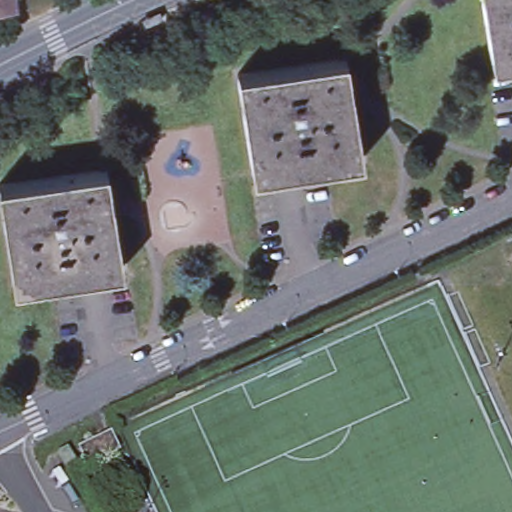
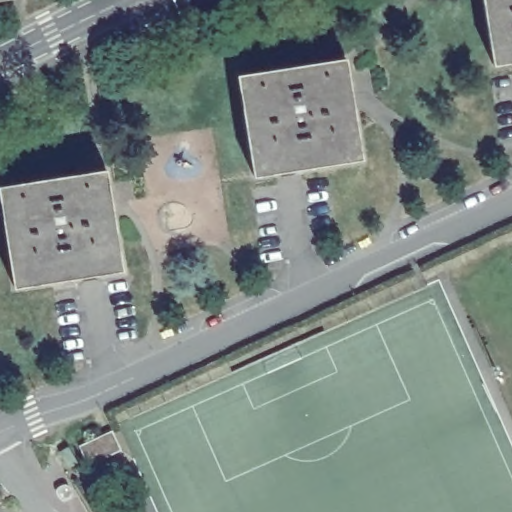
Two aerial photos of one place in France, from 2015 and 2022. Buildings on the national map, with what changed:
unchanged [(482,0),(512,0),(512,63),(492,66),(482,0)]
unchanged [(233,81),(348,59),(366,160),(252,180),(233,81)]
unchanged [(0,187),(103,169),(122,269),(10,288),(0,222),(0,187)]
unchanged [(75,451),(107,435),(115,452),(83,467),(75,451)]
unchanged [(62,450),(70,466),(60,470),(52,454),(62,450)]

